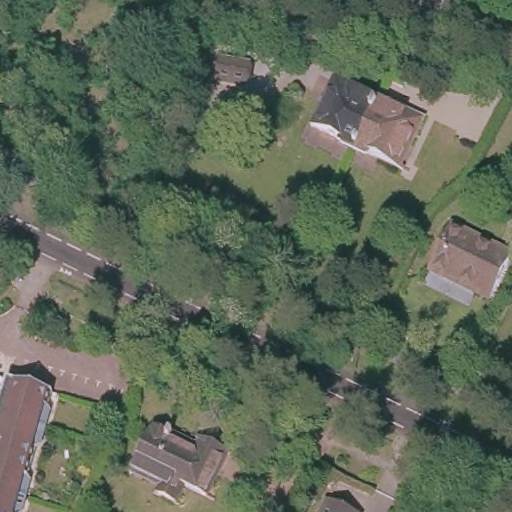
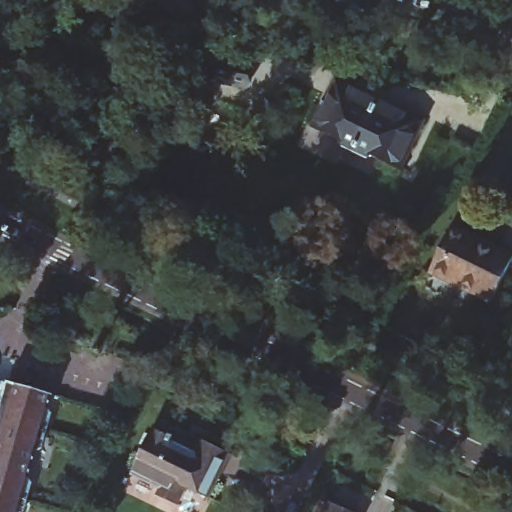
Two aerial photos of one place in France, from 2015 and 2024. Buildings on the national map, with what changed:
unchanged [(242,82),(210,76),(214,54),(245,60),(242,82)]
unchanged [(357,147),(312,127),(335,78),(380,99),(357,147)]
unchanged [(425,121),(412,150),(402,144),(391,165),(357,147),(380,99),(425,121)]
unchanged [(490,295),(427,266),(445,228),(471,241),(475,233),(511,250),(490,295)]
unchanged [(12,385),(53,398),(15,512),(0,512),(0,400),(7,402),(12,385)]
unchanged [(165,486),(134,470),(156,426),(204,449),(206,444),(201,442),(204,437),(241,455),(239,460),(230,456),(210,502),(187,490),(178,509),(158,499),(165,486)]
unchanged [(344,512),(323,512),(327,504),(344,512)]

